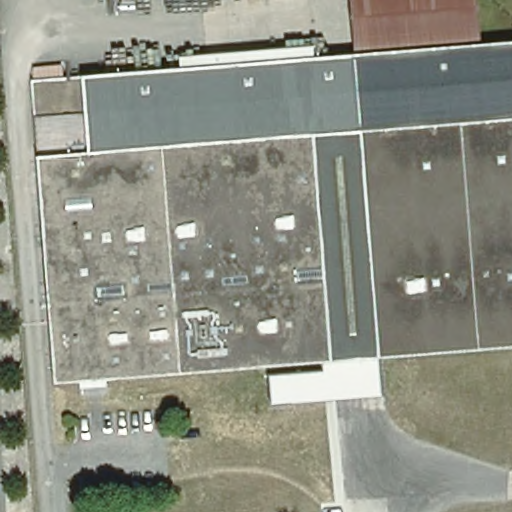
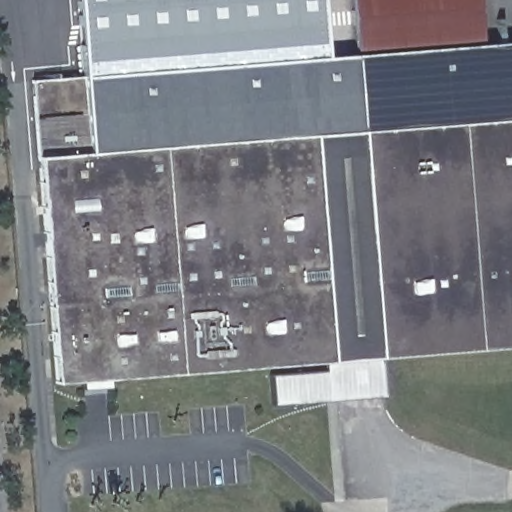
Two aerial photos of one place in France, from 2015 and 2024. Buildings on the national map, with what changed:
new [(296,58),(85,76),(77,0),(322,0),(326,56),(296,58)]
unchanged [(351,46),(348,0),(474,0),(476,37),(351,46)]
unchanged [(281,365),(55,383),(28,81),(296,58),(352,53),(512,39),(512,343),(325,361),(281,365)]
new [(269,375),(323,371),(322,361),(325,361),(377,356),(380,395),(271,405),(269,375)]

